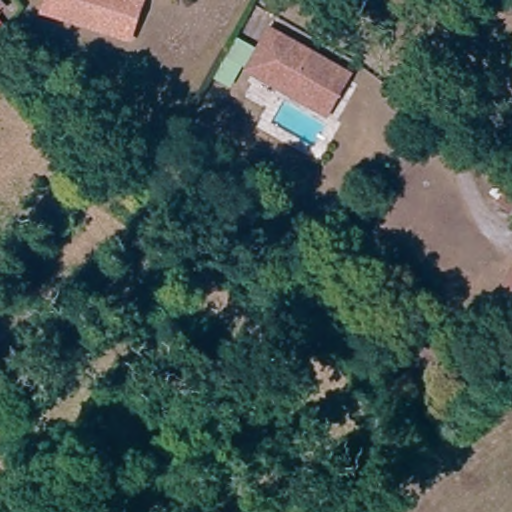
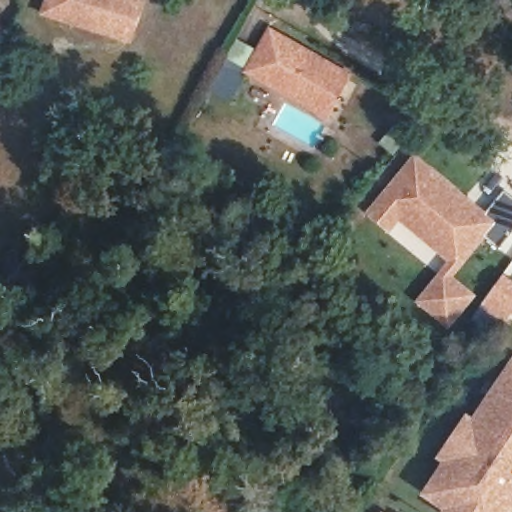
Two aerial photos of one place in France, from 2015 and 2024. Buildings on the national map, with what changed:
unchanged [(38,14),(42,0),(143,0),(129,43),(38,14)]
unchanged [(326,109),(314,102),(261,72),(246,64),(268,24),(337,62),(348,69),(326,109)]
new [(487,211),(505,191),(512,197),(512,230),(499,246),(487,235),(455,276),(477,293),(448,328),(413,300),(451,260),(400,220),(391,232),(367,211),(416,153),(487,211)]
demolished [(502,189),(512,196),(512,215),(510,218),(490,203),(502,189)]
demolished [(501,286),(512,269),(512,294),(501,286)]
new [(512,278),(512,320),(508,325),(481,305),(504,273),(512,278)]
new [(448,460),(439,454),(464,416),(473,422),(504,378),(512,366),(512,503),(506,512),(446,512),(449,507),(426,492),(448,460)]

